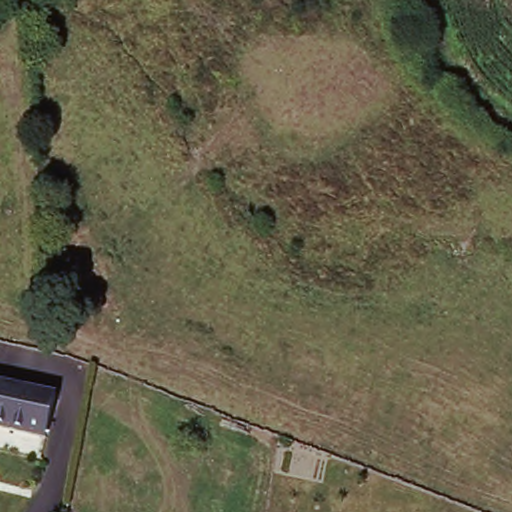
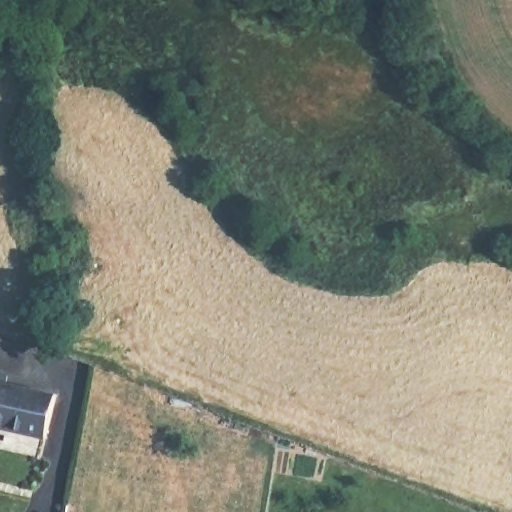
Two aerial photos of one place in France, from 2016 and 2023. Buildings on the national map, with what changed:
unchanged [(55,395),(47,438),(0,428),(0,383),(55,395)]

